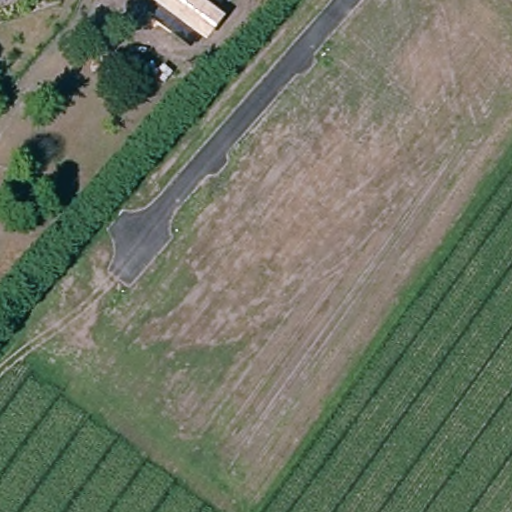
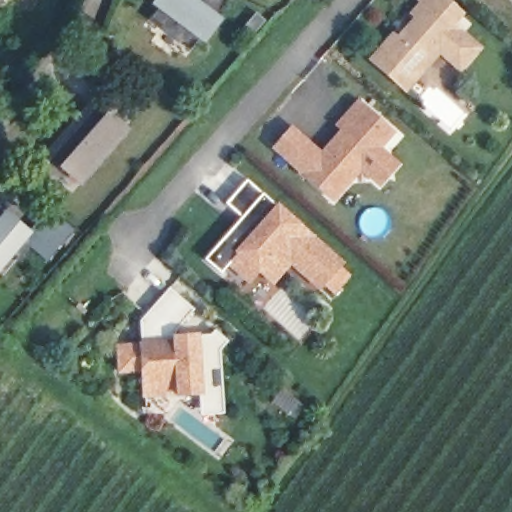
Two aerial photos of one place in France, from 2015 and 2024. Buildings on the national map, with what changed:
new [(202,28),(193,40),(161,15),(169,4),(164,0),(210,0),(208,7),(214,11),(221,16),(208,33),(202,28)]
new [(398,38),(417,16),(413,12),(423,1),(421,0),(446,0),(461,13),(451,24),(477,47),(459,67),(440,50),(406,89),(372,59),(393,34),(398,38)]
new [(70,165),(54,151),(99,99),(131,127),(93,171),(86,179),(70,165)]
new [(370,174),(362,167),(334,199),(306,174),(276,148),(292,129),(322,155),(344,130),(338,125),(359,102),(364,107),(393,132),(379,148),(387,155),(397,164),(380,183),(370,174)]
new [(247,178),(278,205),(271,213),(261,204),(246,220),(250,223),(242,231),(234,224),(242,216),(226,202),(247,178)]
new [(334,291),(323,282),(320,285),(290,259),(283,268),(272,280),(258,267),(248,278),(230,262),(221,271),(205,257),(234,224),(242,231),(250,223),(246,220),(261,204),(271,213),(278,205),(341,260),(339,263),(351,272),(334,291)]
new [(7,208),(20,221),(0,245),(0,216),(7,208)]
new [(31,232),(32,231),(50,210),(75,232),(48,262),(26,243),(31,232)]
new [(20,221),(32,231),(31,232),(26,243),(0,272),(0,245),(20,221)]
new [(202,412),(201,393),(200,387),(146,391),(145,368),(121,370),(119,344),(142,342),(141,319),(150,308),(170,286),(195,307),(173,332),(176,335),(211,332),(215,328),(229,339),(221,348),(224,391),(225,411),(202,412)]

